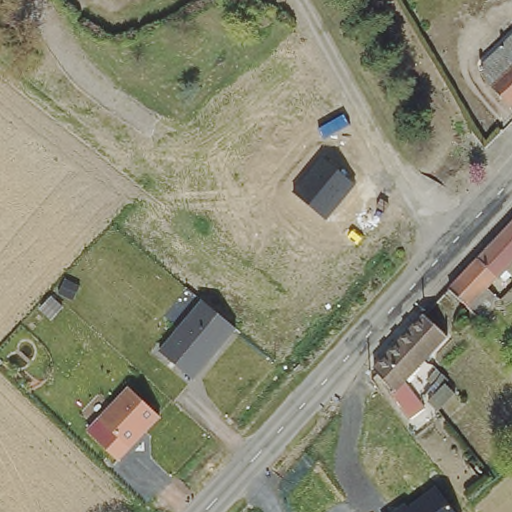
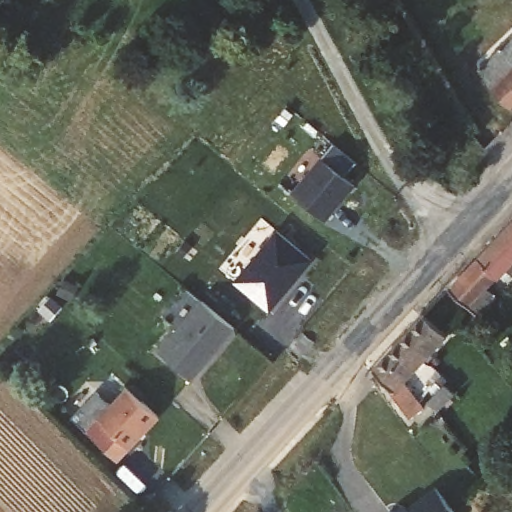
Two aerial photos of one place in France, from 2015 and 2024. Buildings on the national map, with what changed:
unchanged [(507,101),(493,88),(486,81),(475,64),(500,40),(512,28),(512,96),(507,101)]
unchanged [(355,184),(326,221),(290,192),(322,156),(355,184)]
unchanged [(496,272),(475,253),(510,216),(512,213),(512,273),(504,265),(496,272)]
new [(234,281),(277,229),(315,260),(270,312),(234,281)]
unchanged [(475,253),(496,272),(485,284),(492,293),(475,312),(445,285),(475,253)]
unchanged [(237,330),(195,382),(157,351),(200,298),(237,330)]
new [(52,302),(63,312),(52,323),(42,314),(52,302)]
unchanged [(390,385),(370,365),(394,339),(422,310),(424,313),(444,332),(402,377),(423,404),(408,416),(387,388),(390,385)]
unchanged [(427,396),(445,378),(455,388),(452,390),(437,406),(427,396)]
unchanged [(160,418),(117,462),(85,432),(127,387),(160,418)]
unchanged [(389,512),(430,483),(452,512),(389,512)]

